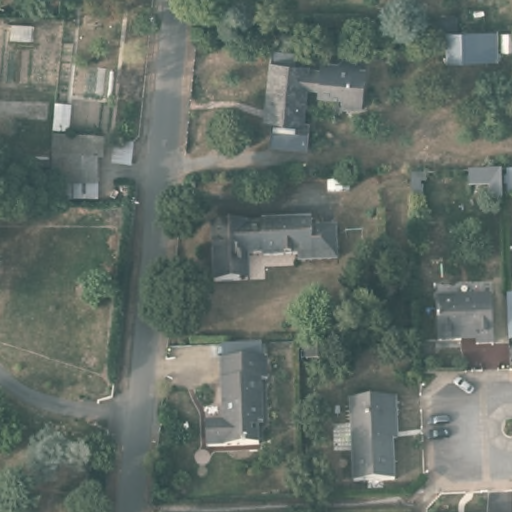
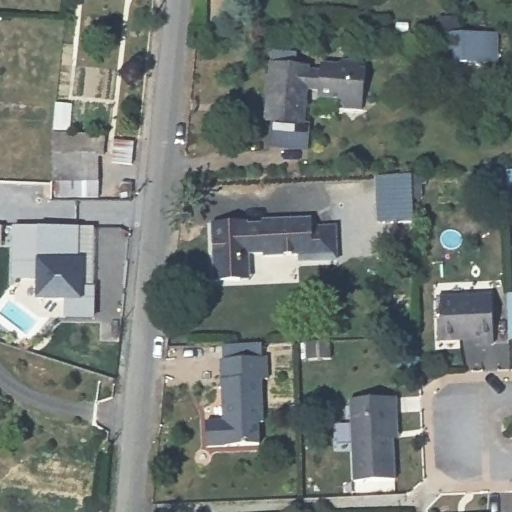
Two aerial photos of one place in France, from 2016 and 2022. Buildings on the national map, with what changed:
unchanged [(488,60),(448,61),(448,36),(465,36),(488,35),(488,60)]
unchanged [(276,145),(279,115),(269,114),(271,99),(275,58),(277,38),(314,41),(313,61),(312,63),(325,64),(326,56),(347,58),(348,53),(366,55),(365,63),(370,64),(366,103),(351,101),(343,94),(323,92),(323,85),(311,84),(308,118),(306,144),(276,145)]
unchanged [(132,161),(112,160),(114,138),(134,140),(132,161)]
unchanged [(98,171),(52,170),(52,141),(97,142),(98,171)]
unchanged [(466,192),(465,169),(512,168),(512,198),(505,199),(504,191),(466,192)]
unchanged [(245,274),(218,275),(216,216),(252,215),(253,216),(267,215),(317,214),(317,249),(268,251),(267,248),(254,249),(254,256),(254,274),(245,274)]
new [(74,227),(91,227),(89,290),(88,318),(61,317),(62,299),(34,298),(35,278),(10,277),(11,225),(74,227)]
unchanged [(493,343),(476,344),(476,333),(461,333),(461,340),(438,340),(436,296),(492,295),(493,343)]
unchanged [(268,377),(261,378),(263,422),(257,422),(258,445),(208,446),(207,420),(223,420),(222,359),(267,358),(268,377)]
unchanged [(353,480),(351,398),(397,397),(398,415),(398,438),(392,438),(394,480),(353,480)]

